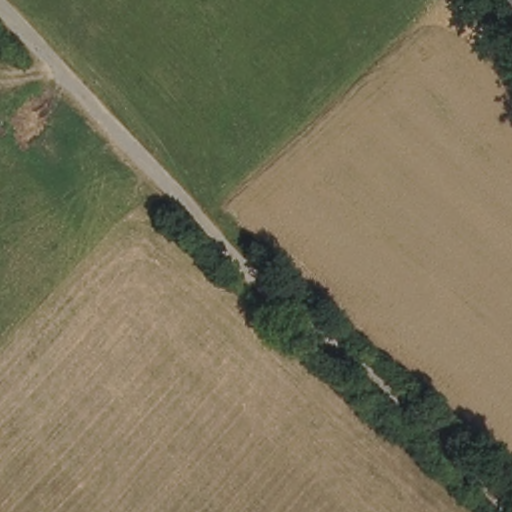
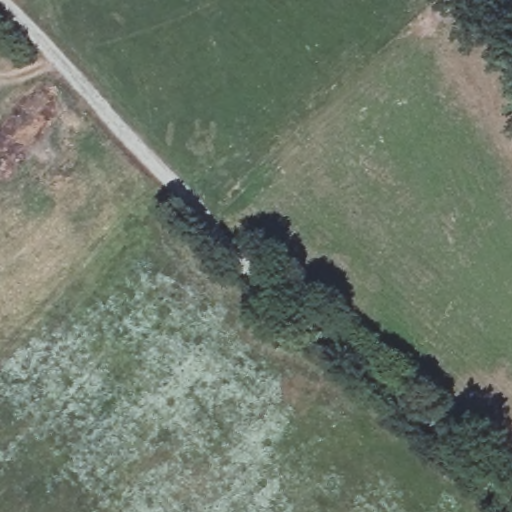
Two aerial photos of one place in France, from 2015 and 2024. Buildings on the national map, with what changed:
[]

